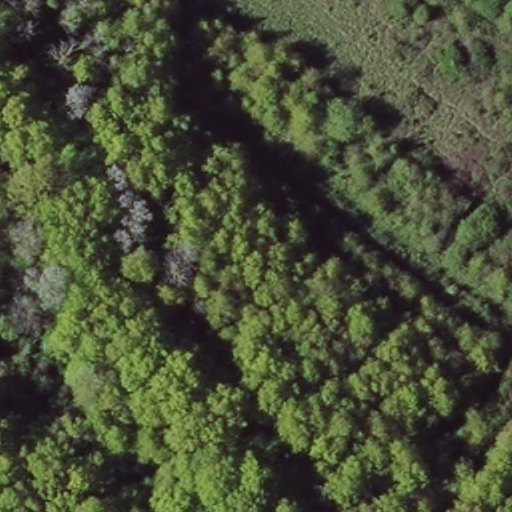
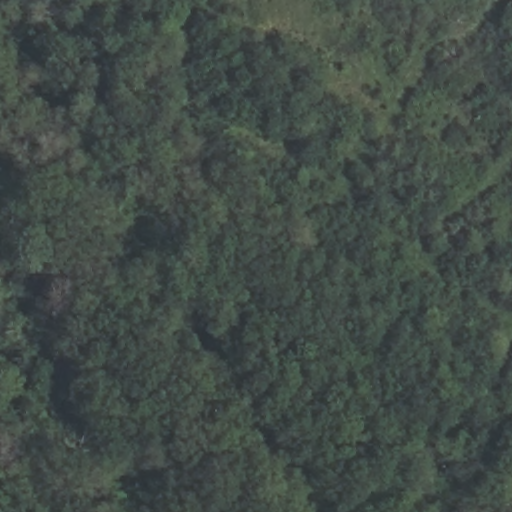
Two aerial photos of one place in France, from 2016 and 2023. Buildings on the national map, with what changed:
[]

